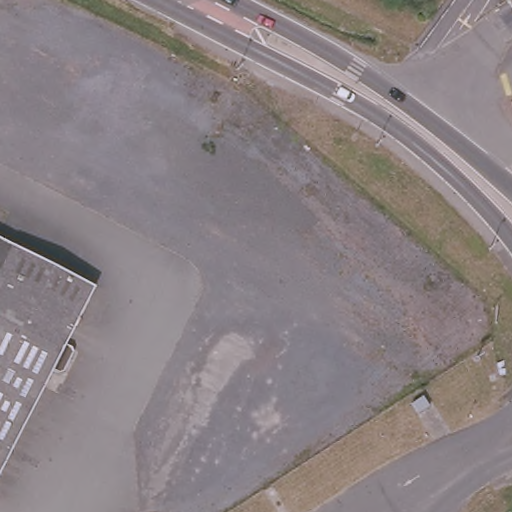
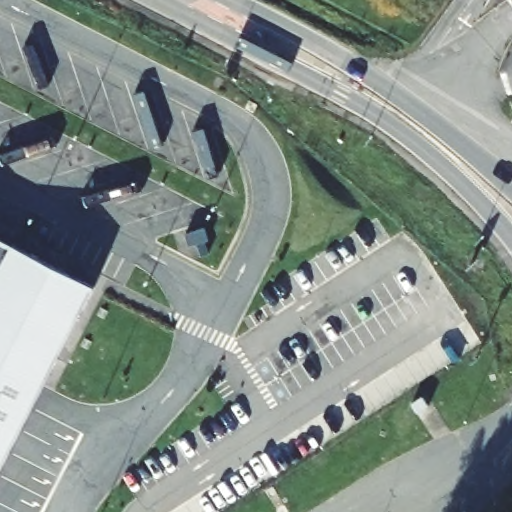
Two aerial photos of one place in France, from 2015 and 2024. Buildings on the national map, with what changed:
unchanged [(88,286),(60,341),(65,344),(67,351),(59,367),(52,369),(47,366),(0,459),(0,242),(88,286)]
unchanged [(430,405),(418,413),(412,402),(423,395),(430,405)]

